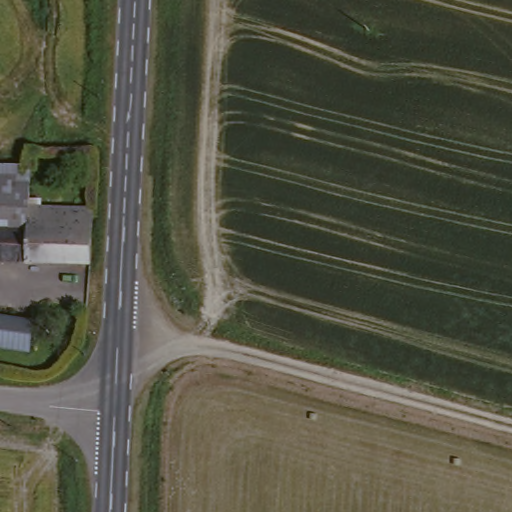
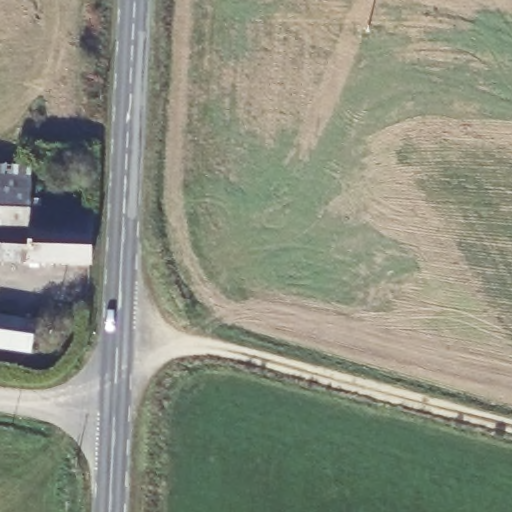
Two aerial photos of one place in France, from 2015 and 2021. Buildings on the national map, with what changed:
unchanged [(0,233),(0,173),(33,174),(32,214),(32,233),(0,233)]
unchanged [(32,233),(32,214),(94,215),(94,220),(94,221),(95,269),(0,268),(0,233),(32,233)]
unchanged [(39,326),(35,359),(0,355),(0,322),(39,326)]

